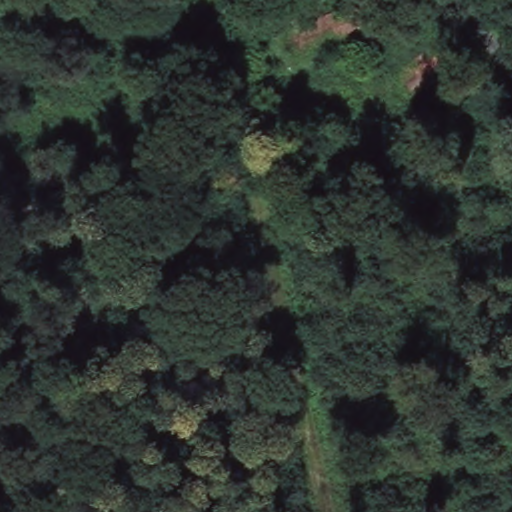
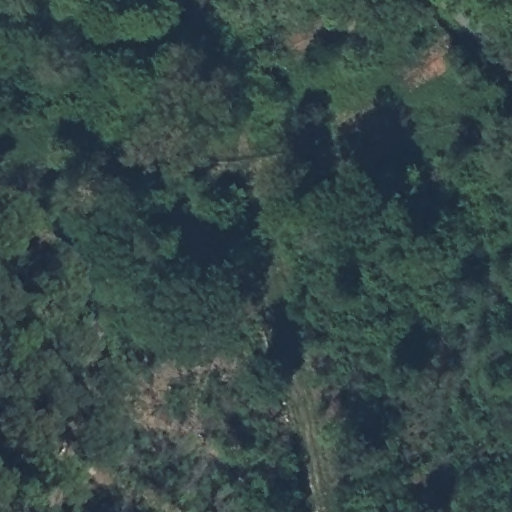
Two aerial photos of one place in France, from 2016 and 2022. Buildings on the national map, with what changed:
unchanged [(378,45),(362,51),(357,41),(289,67),(278,39),(360,5),(378,45)]
unchanged [(481,52),(431,95),(412,72),(462,32),(481,52)]

